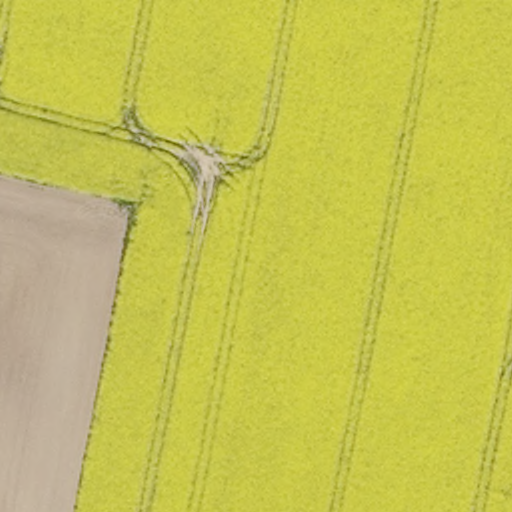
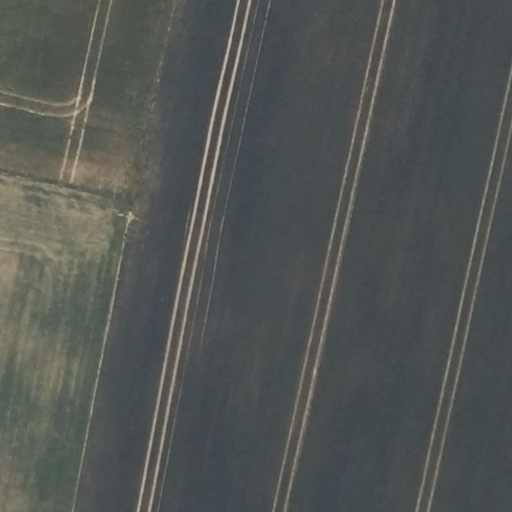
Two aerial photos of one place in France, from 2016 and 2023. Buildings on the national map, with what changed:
[]

